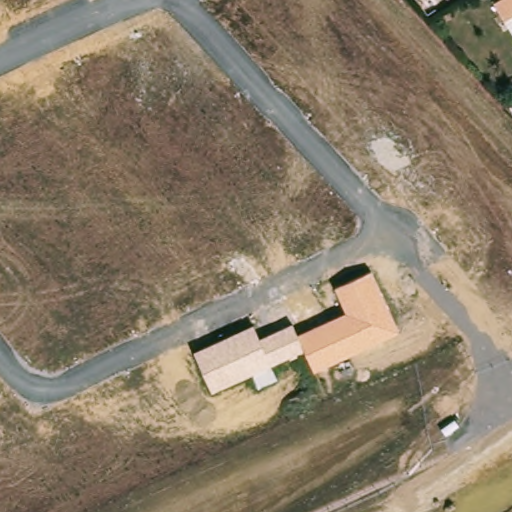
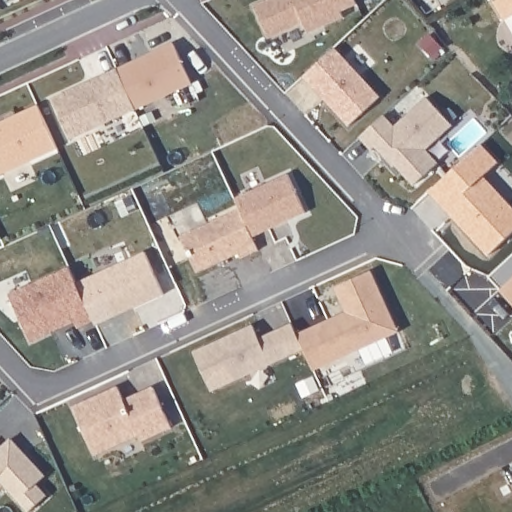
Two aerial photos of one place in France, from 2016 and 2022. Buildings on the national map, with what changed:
new [(343,13),(345,18),(310,35),(305,24),(271,40),(256,8),(272,0),(356,0),(359,5),(343,13)]
unchanged [(509,15),(500,0),(512,0),(512,21),(509,15)]
new [(174,44),(192,83),(136,109),(118,69),(174,44)]
new [(335,48),(380,97),(349,126),(304,77),(335,48)]
new [(102,76),(118,69),(136,109),(71,139),(52,99),(81,86),(102,76)]
new [(384,115),(395,127),(426,97),(452,125),(426,149),(438,163),(414,185),(396,165),(394,167),(375,147),(372,150),(360,137),(384,115)]
unchanged [(510,105),(512,104),(512,108),(510,105)]
new [(58,148),(0,175),(0,123),(39,105),(58,148)]
new [(288,174),(306,212),(253,237),(240,209),(235,198),(288,174)]
new [(240,209),(253,237),(259,250),(242,258),(239,253),(197,272),(181,236),(240,209)]
new [(96,325),(94,321),(76,283),(145,252),(164,294),(133,308),(112,318),(96,325)]
new [(489,277),(512,255),(512,302),(489,277)]
new [(31,342),(9,294),(69,267),(76,283),(94,321),(78,328),(75,321),(51,332),(31,342)]
unchanged [(400,332),(314,371),(304,350),(212,392),(194,352),(255,324),(260,337),(292,323),(297,333),(346,311),(335,287),(372,271),(400,332)]
new [(125,401),(136,395),(154,387),(172,427),(141,441),(139,435),(95,455),(74,408),(118,387),(125,401)]
new [(46,475),(36,484),(47,495),(29,511),(0,480),(0,448),(11,438),(46,475)]

